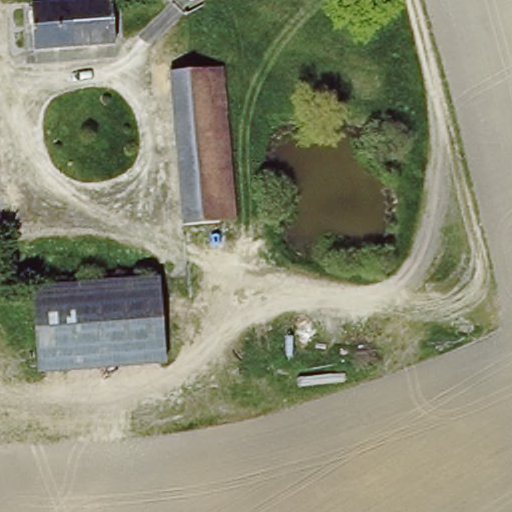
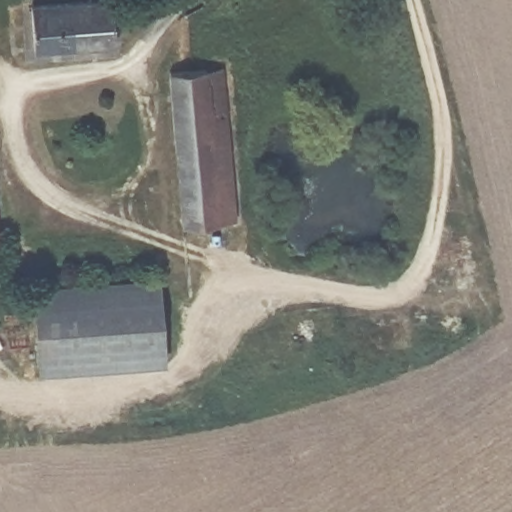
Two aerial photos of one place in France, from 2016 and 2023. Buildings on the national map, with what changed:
unchanged [(36,6),(112,1),(115,46),(38,50),(36,6)]
unchanged [(207,72),(225,70),(238,217),(219,219),(207,72)]
unchanged [(172,75),(207,72),(219,219),(185,222),(172,75)]
unchanged [(36,292),(161,285),(169,365),(159,366),(157,343),(41,353),(36,292)]
unchanged [(42,375),(41,353),(157,343),(159,366),(42,375)]

